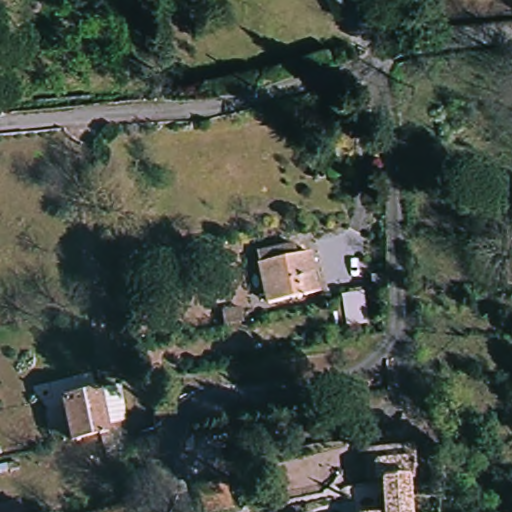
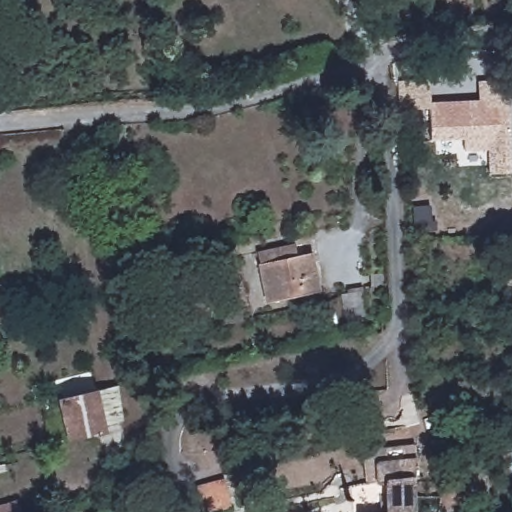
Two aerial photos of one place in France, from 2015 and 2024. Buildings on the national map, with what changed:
new [(432,102),(480,100),(478,81),(506,80),(512,142),(512,173),(490,174),(488,150),(465,152),(464,139),(431,141),(430,109),(400,110),(398,81),(430,79),(432,102)]
unchanged [(320,288),(266,298),(257,262),(255,252),(294,244),(296,254),(311,252),(320,288)]
unchanged [(512,266),(512,283),(510,283),(510,266),(512,266)]
unchanged [(365,292),(367,298),(370,318),(350,322),(345,296),(365,292)]
unchanged [(60,397),(96,390),(115,386),(121,421),(125,448),(100,452),(98,445),(70,451),(66,434),(60,397)]
unchanged [(370,479),(370,446),(419,445),(420,475),(415,476),(387,478),(370,479)]
unchanged [(415,476),(416,495),(417,512),(388,512),(387,478),(415,476)]
unchanged [(227,482),(233,506),(207,512),(202,512),(197,490),(197,486),(226,479),(227,482)]
unchanged [(13,512),(0,512),(0,504),(11,500),(13,512)]

